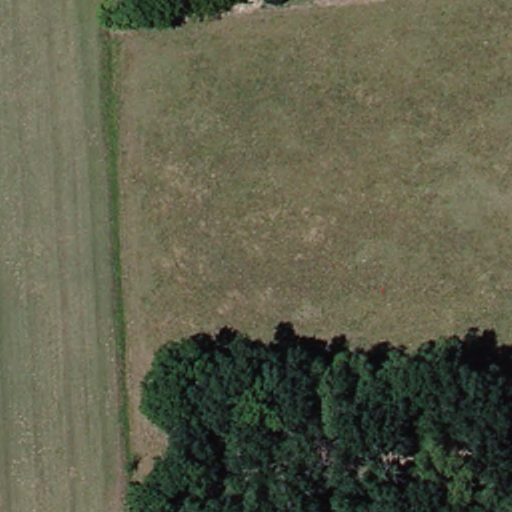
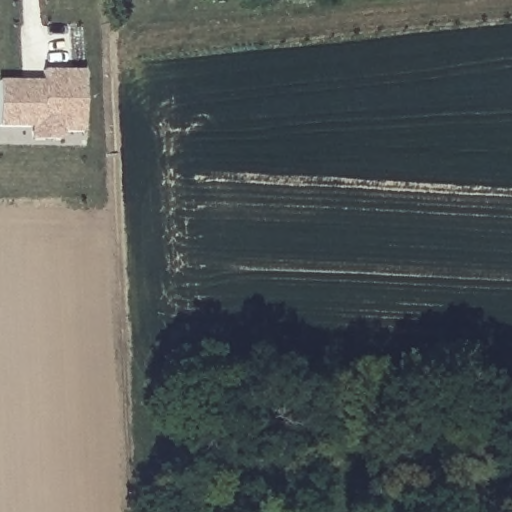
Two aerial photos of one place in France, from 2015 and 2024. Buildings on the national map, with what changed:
new [(42,81),(42,70),(83,71),(84,131),(62,131),(62,140),(30,141),(30,129),(0,129),(0,81),(42,81)]

